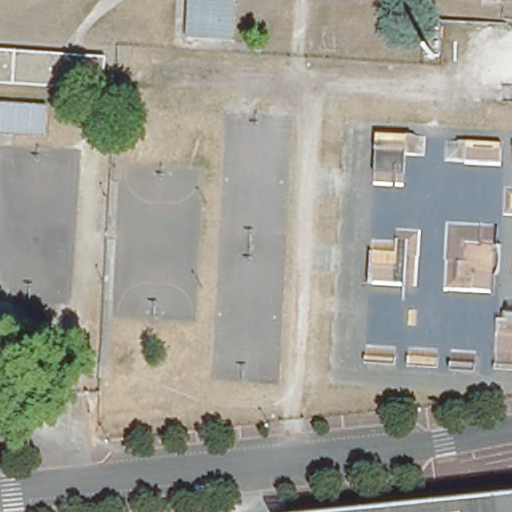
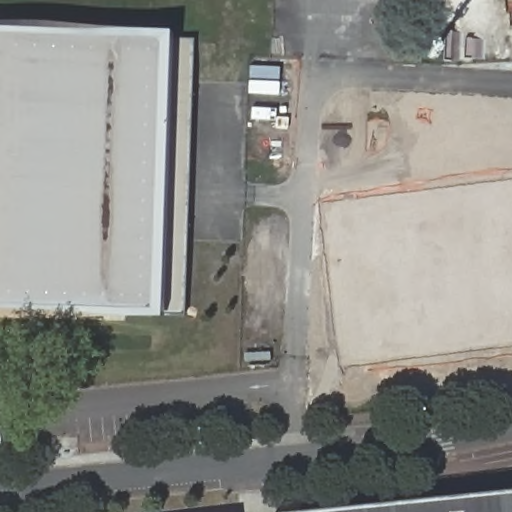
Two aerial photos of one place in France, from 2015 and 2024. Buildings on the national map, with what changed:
demolished [(183,39),(186,0),(233,0),(231,42),(183,39)]
new [(167,39),(193,39),(184,314),(158,313),(157,319),(0,312),(0,29),(167,34),(167,39)]
demolished [(4,46),(15,48),(15,54),(26,54),(44,55),(44,49),(60,50),(60,56),(70,57),(74,57),(74,51),(104,54),(102,86),(3,79),(0,79),(0,46),(4,46)]
demolished [(47,108),(45,134),(0,132),(0,105),(47,108)]
unchanged [(512,494),(512,512),(351,512),(512,494)]

